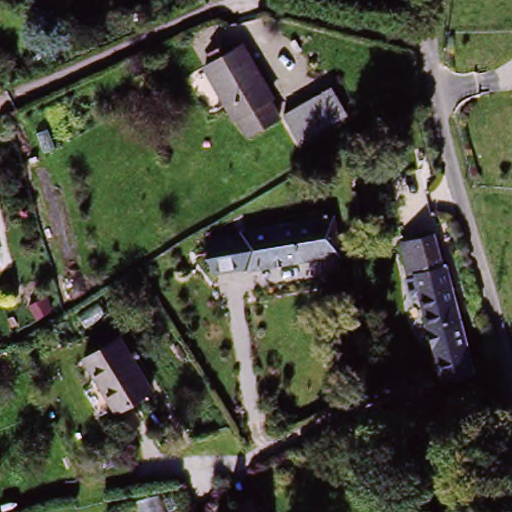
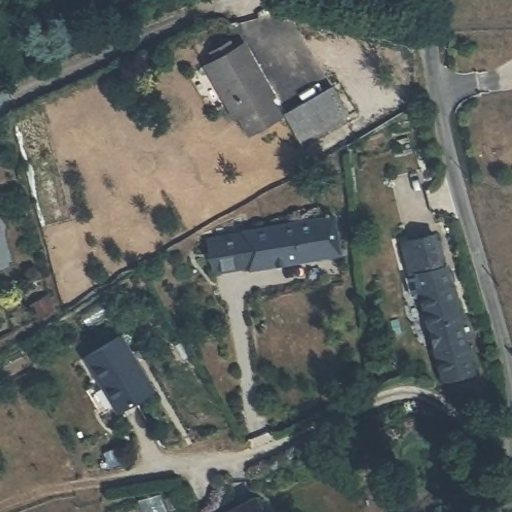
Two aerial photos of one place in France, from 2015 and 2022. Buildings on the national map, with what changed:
unchanged [(273,104),(270,108),(280,127),(255,142),(246,127),(239,131),(209,78),(219,73),(215,65),(234,54),(239,62),(247,57),(273,104)]
unchanged [(332,90),(348,120),(336,127),(300,147),(285,120),(320,98),(332,90)]
unchanged [(237,272),(232,236),(322,220),(327,255),(237,272)]
unchanged [(208,277),(203,241),(232,236),(237,272),(208,277)]
unchanged [(407,283),(393,251),(427,238),(477,375),(451,386),(412,281),(407,283)]
unchanged [(83,367),(119,341),(157,395),(121,421),(83,367)]
unchanged [(254,512),(228,512),(247,500),(254,512)]

